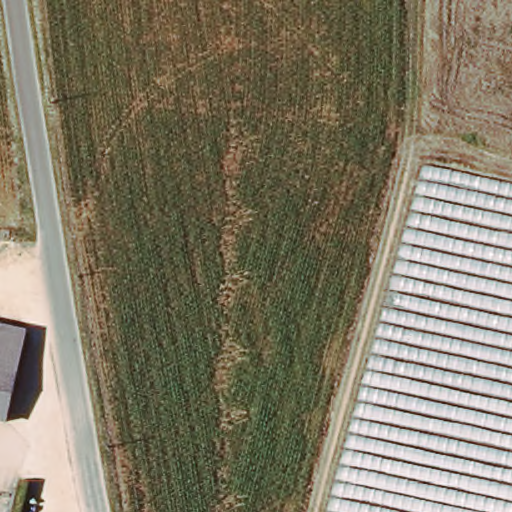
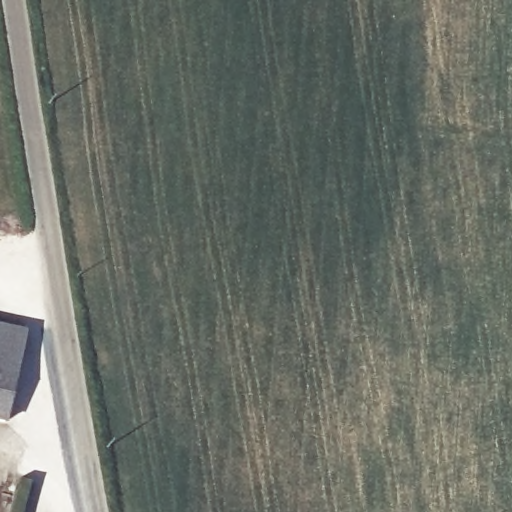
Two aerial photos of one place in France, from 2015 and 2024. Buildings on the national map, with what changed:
demolished [(512,512),(331,512),(427,169),(512,185),(512,512)]
unchanged [(24,326),(17,364),(0,360),(0,321),(24,326)]
unchanged [(5,418),(0,417),(0,360),(17,364),(5,418)]

